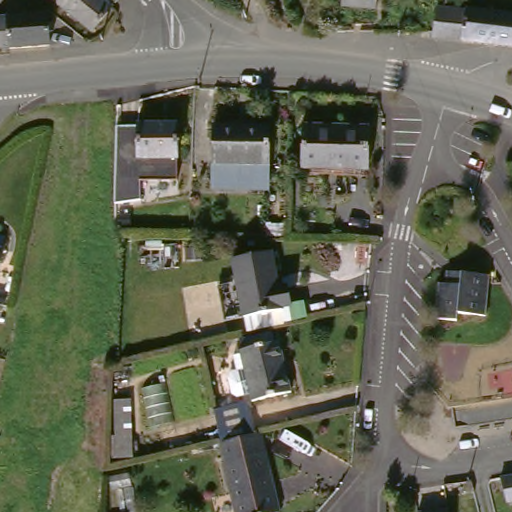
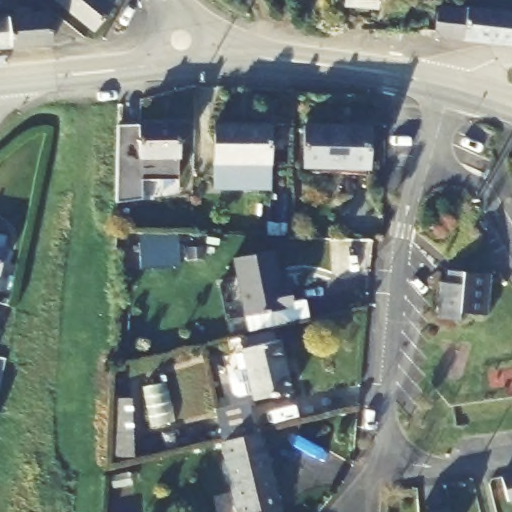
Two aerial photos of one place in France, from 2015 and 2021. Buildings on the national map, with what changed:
unchanged [(62,0),(112,0),(121,7),(99,31),(68,5),(62,0)]
unchanged [(350,0),(383,0),(381,16),(349,13),(350,0)]
unchanged [(510,15),(512,15),(512,43),(446,35),(451,6),(510,11),(510,15)]
unchanged [(55,11),(59,44),(19,48),(15,15),(55,11)]
unchanged [(15,15),(19,48),(0,50),(0,16),(15,15)]
unchanged [(372,128),(367,171),(301,163),(306,119),(372,128)]
unchanged [(190,127),(186,175),(154,173),(152,197),(122,202),(122,200),(127,122),(190,127)]
unchanged [(275,129),(271,187),(216,183),(220,126),(275,129)]
unchanged [(3,279),(0,279),(0,238),(9,239),(3,279)]
unchanged [(270,250),(275,285),(286,284),(290,305),(283,306),(284,311),(244,318),(233,257),(270,250)]
unchanged [(472,313),(472,320),(446,319),(448,283),(457,284),(457,271),(470,272),(498,272),(495,315),(472,313)]
unchanged [(242,393),(238,377),(241,372),(247,370),(245,364),(243,355),(250,353),(249,346),(290,338),(301,392),(262,401),(260,393),(243,397),(242,393)]
unchanged [(229,432),(222,405),(255,398),(261,425),(229,432)]
unchanged [(278,504),(236,511),(225,441),(267,435),(278,504)]
unchanged [(498,472),(512,470),(512,496),(505,498),(498,472)]

